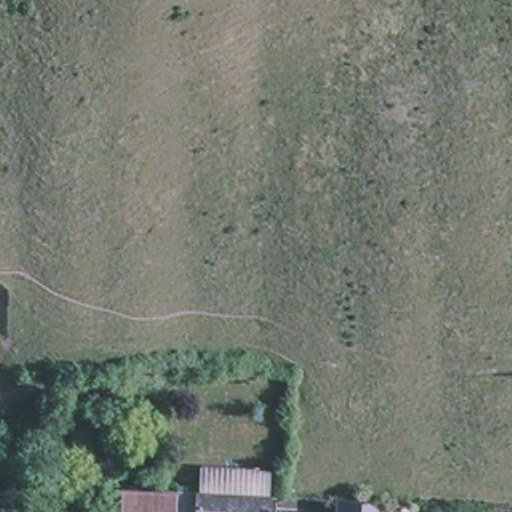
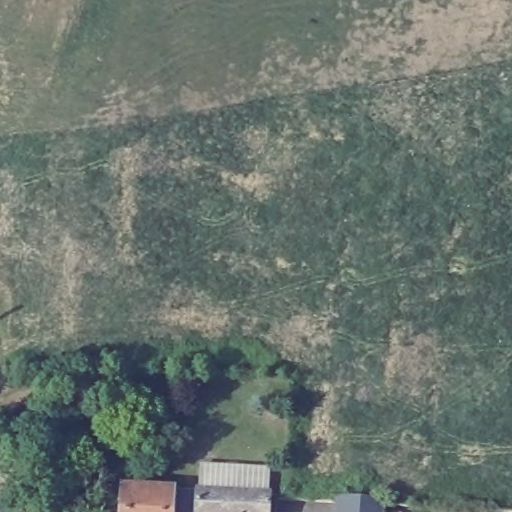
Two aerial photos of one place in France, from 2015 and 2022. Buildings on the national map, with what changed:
unchanged [(34,468),(29,487),(0,479),(0,460),(34,468)]
unchanged [(107,511),(109,482),(124,482),(178,486),(201,487),(202,462),(274,467),(271,492),(274,492),(272,512),(123,512),(107,511)]
unchanged [(329,511),(330,500),(341,501),(384,503),(384,512),(340,512),(341,512),(329,511)]

